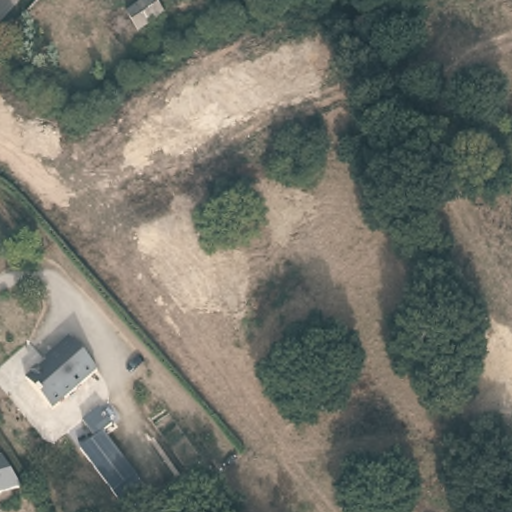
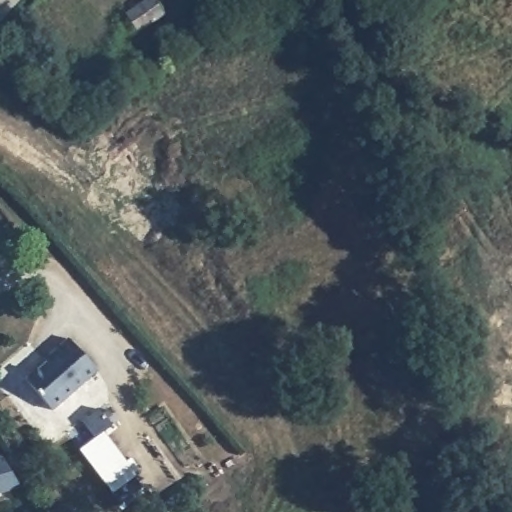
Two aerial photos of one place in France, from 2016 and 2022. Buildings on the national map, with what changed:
unchanged [(126,12),(142,0),(155,0),(161,8),(137,29),(126,12)]
unchanged [(99,368),(54,408),(28,378),(46,361),(44,359),(70,335),(99,368)]
unchanged [(124,500),(116,490),(82,447),(97,436),(98,435),(85,419),(101,407),(105,411),(113,422),(104,430),(105,431),(138,473),(136,475),(143,485),(124,500)]
unchanged [(12,489),(0,494),(0,470),(11,487),(12,489)]

